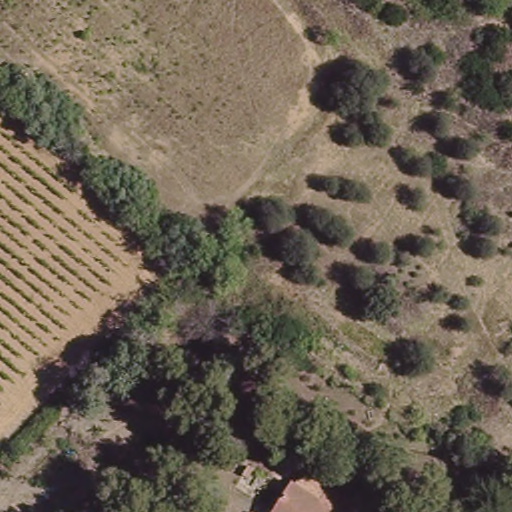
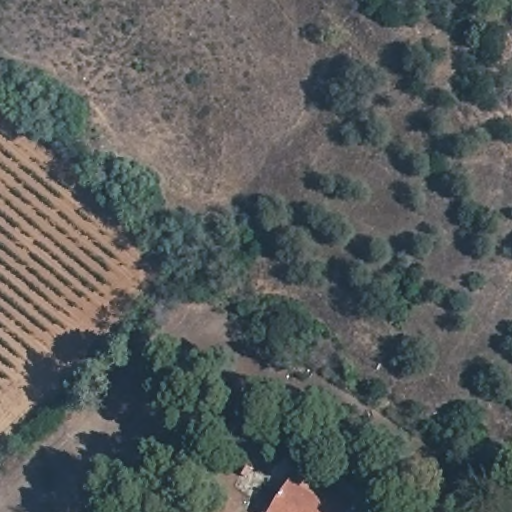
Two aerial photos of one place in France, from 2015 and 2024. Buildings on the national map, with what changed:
unchanged [(318,375),(309,387),(297,378),(306,366),(318,375)]
unchanged [(321,505),(330,492),(356,509),(355,512),(275,512),(292,487),(321,505)]

